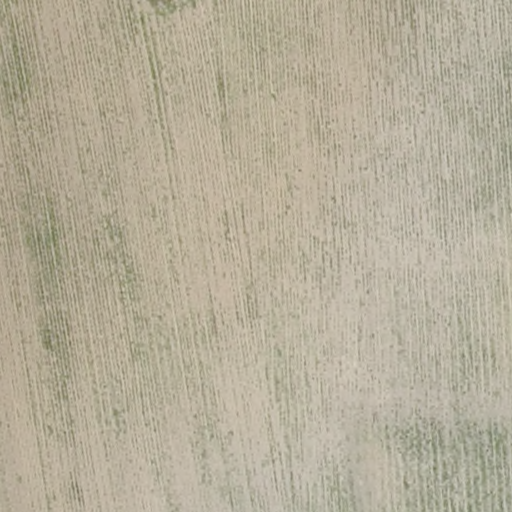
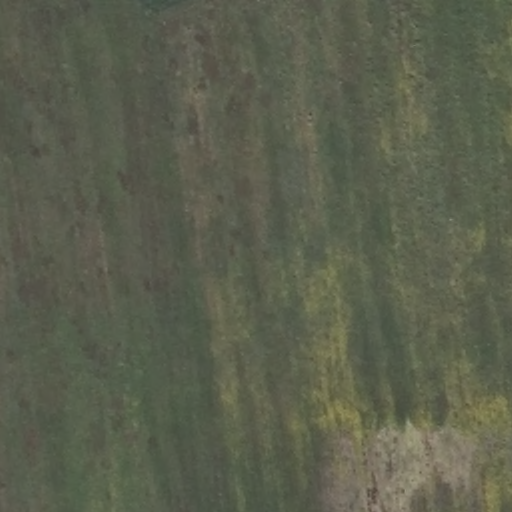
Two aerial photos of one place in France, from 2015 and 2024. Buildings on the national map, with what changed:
[]

